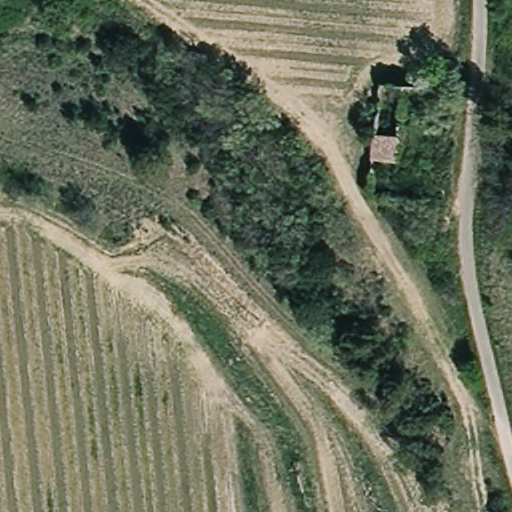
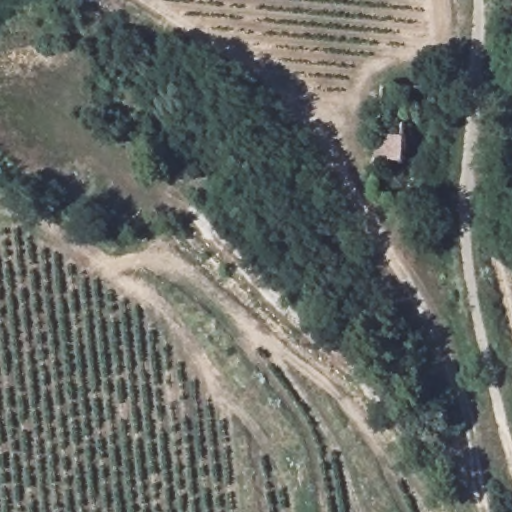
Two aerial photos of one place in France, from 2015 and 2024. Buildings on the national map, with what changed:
unchanged [(397,132),(396,158),(372,157),(375,130),(397,132)]

